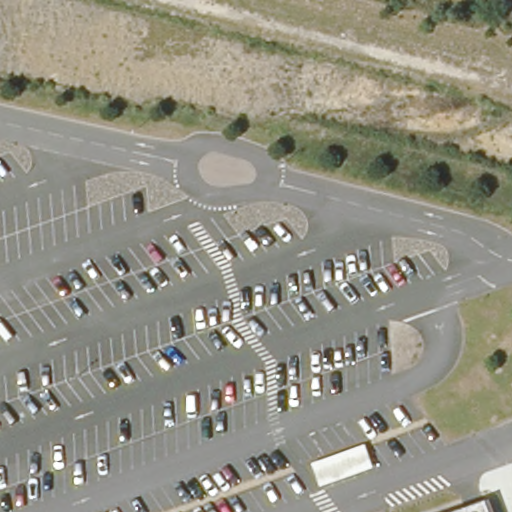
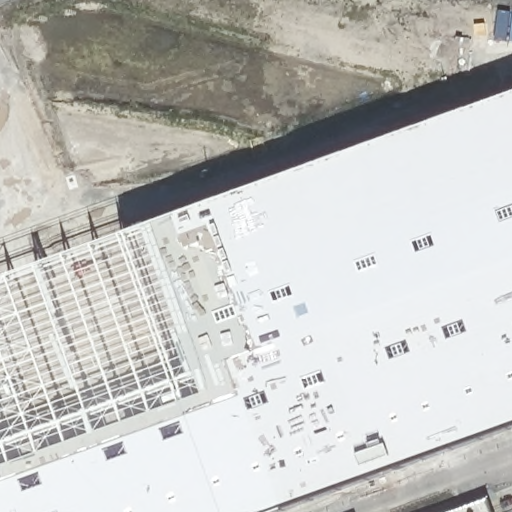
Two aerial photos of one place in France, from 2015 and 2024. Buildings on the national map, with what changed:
new [(512,427),(276,512),(0,512),(0,279),(512,94),(512,427)]
unchanged [(485,505),(488,512),(466,512),(485,505)]

